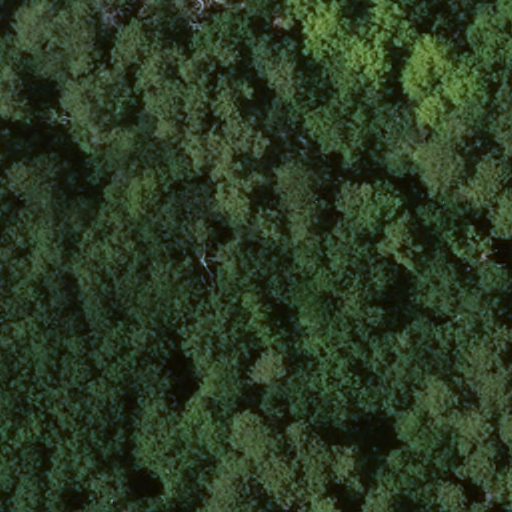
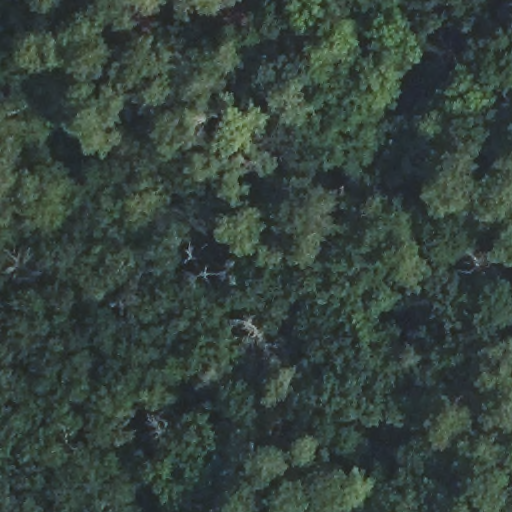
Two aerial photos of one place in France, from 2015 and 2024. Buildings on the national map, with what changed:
[]

